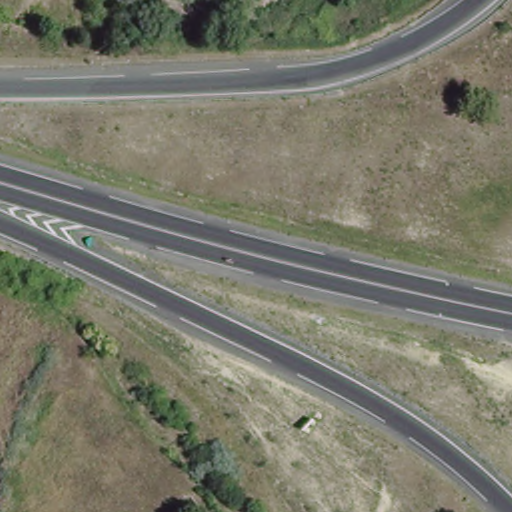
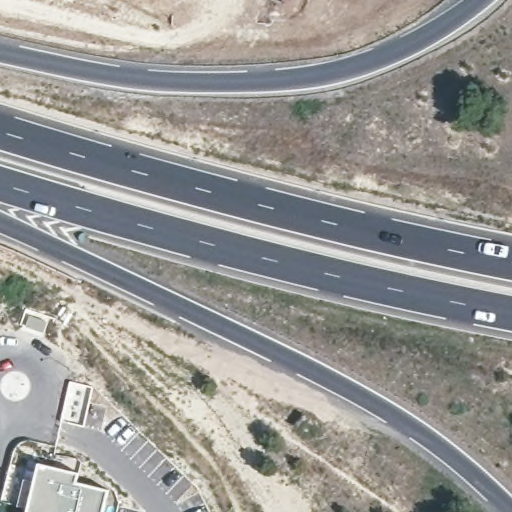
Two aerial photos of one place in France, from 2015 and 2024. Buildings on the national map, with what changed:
new [(25,507),(16,505),(23,477),(32,479),(37,461),(57,465),(58,462),(57,461),(58,455),(79,460),(77,470),(80,471),(77,480),(110,488),(105,512),(24,512),(25,507)]

